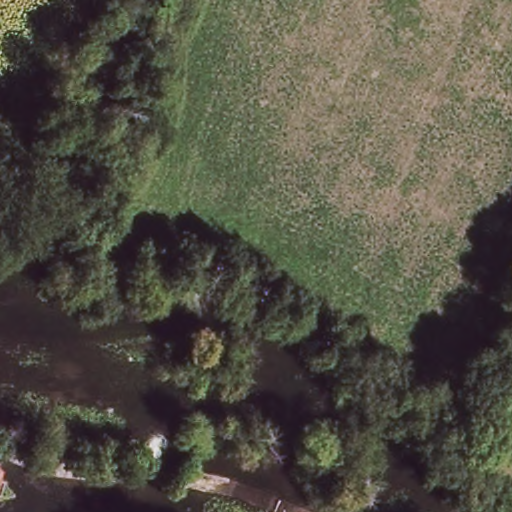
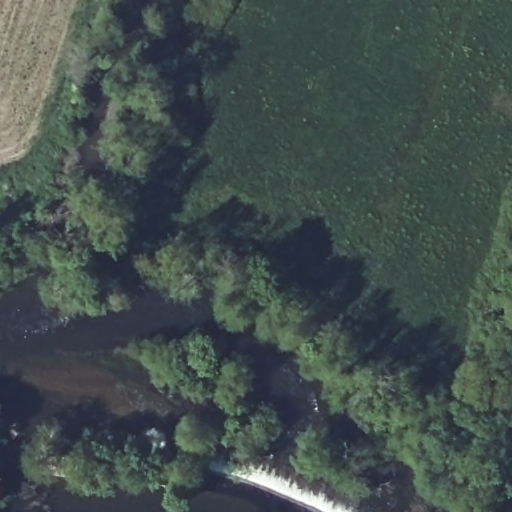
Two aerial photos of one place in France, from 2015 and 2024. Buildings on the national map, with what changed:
unchanged [(1,482),(2,504),(0,505),(0,482),(1,482)]

